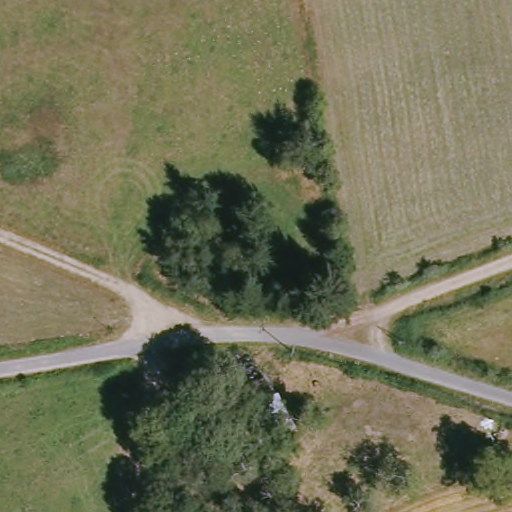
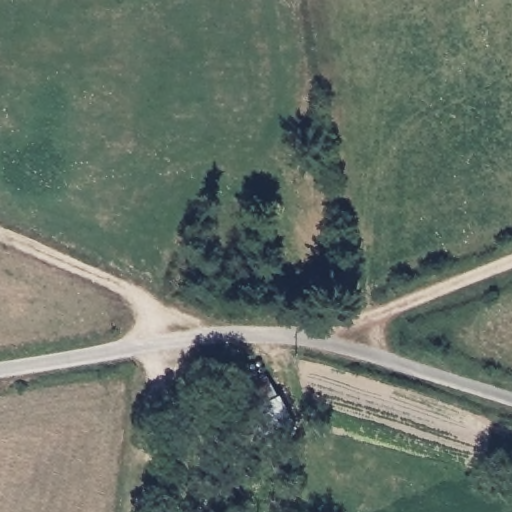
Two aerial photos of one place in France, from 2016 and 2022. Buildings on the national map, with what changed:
unchanged [(238,392),(272,373),(301,432),(265,448),(238,392)]

